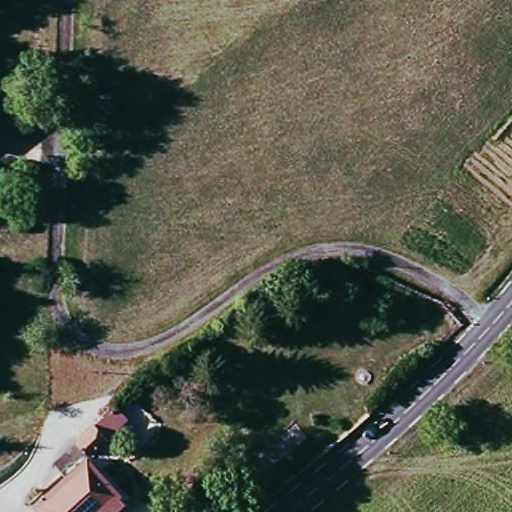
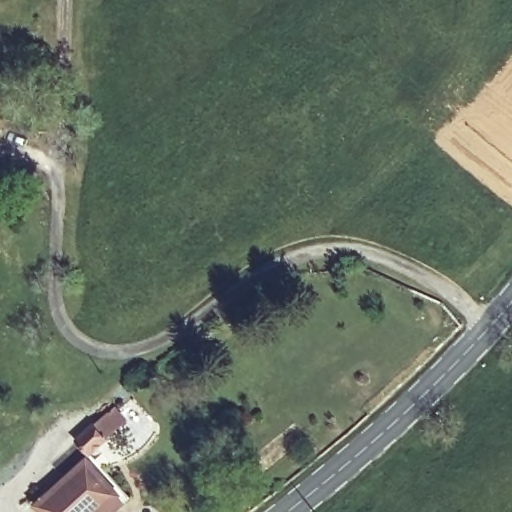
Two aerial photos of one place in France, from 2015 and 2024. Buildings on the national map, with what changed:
unchanged [(117,434),(93,456),(81,442),(104,421),(117,434)]
unchanged [(87,466),(95,458),(132,498),(117,512),(103,512),(117,500),(87,466)]
unchanged [(87,466),(117,500),(103,512),(41,512),(38,509),(87,466)]

